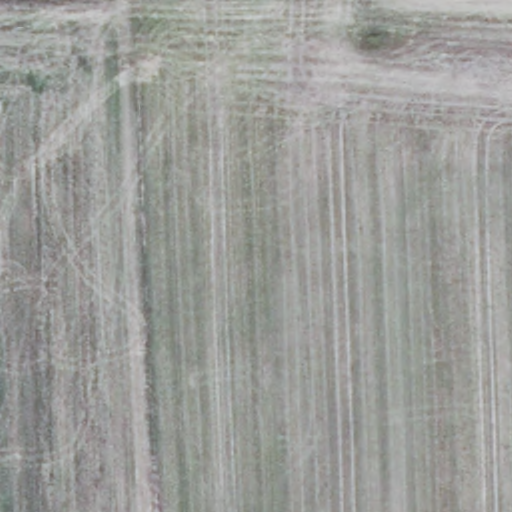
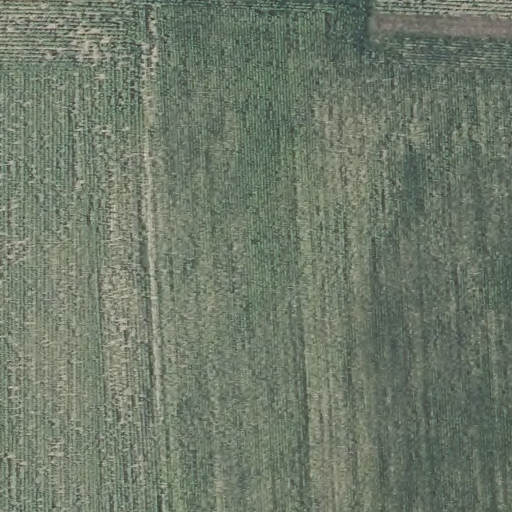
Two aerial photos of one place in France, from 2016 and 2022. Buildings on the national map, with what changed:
[]

